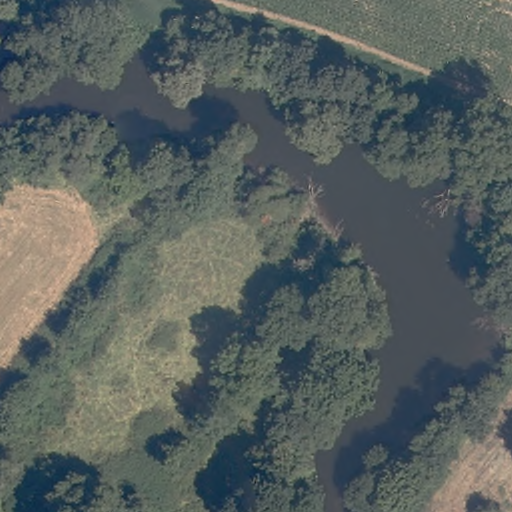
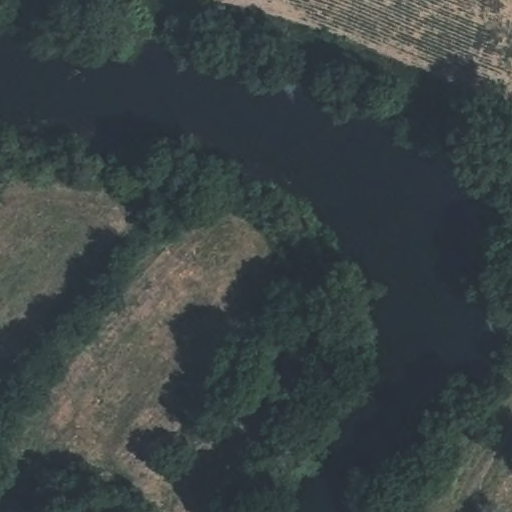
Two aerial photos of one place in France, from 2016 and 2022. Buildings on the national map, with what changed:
[]

